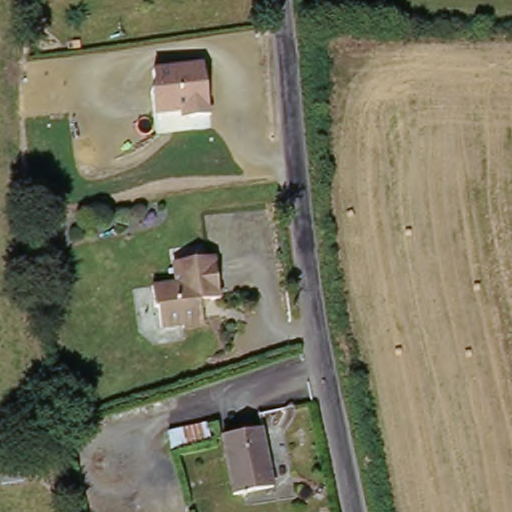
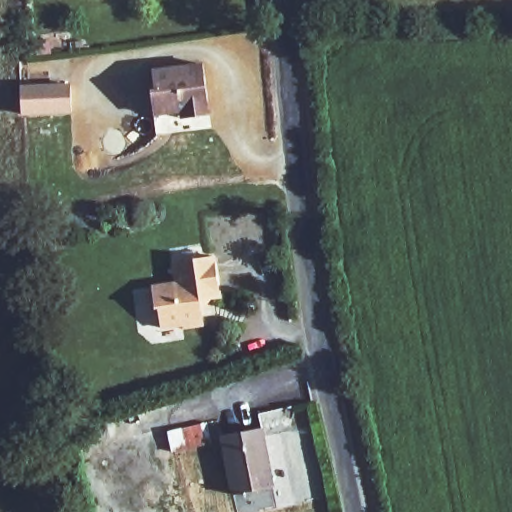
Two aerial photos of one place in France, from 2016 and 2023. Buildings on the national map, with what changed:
unchanged [(210,116),(182,120),(181,115),(153,118),(151,91),(153,85),(151,70),(204,64),(210,116)]
new [(20,86),(72,84),(73,115),(22,116),(20,86)]
unchanged [(222,254),(227,295),(208,297),(211,321),(191,324),(191,321),(169,324),(166,303),(163,303),(160,283),(184,280),(182,259),(222,254)]
unchanged [(270,486),(229,492),(220,440),(219,435),(260,428),(270,486)]

